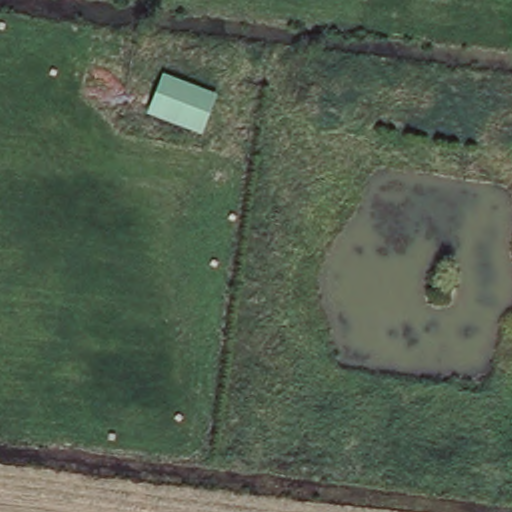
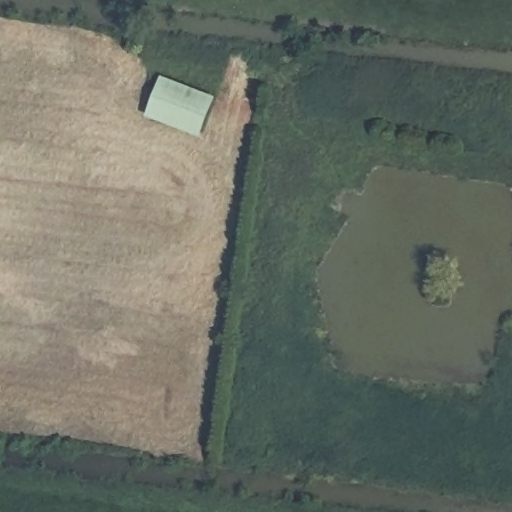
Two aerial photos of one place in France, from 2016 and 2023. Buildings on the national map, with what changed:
unchanged [(213,96),(200,138),(142,116),(159,76),(213,96)]

